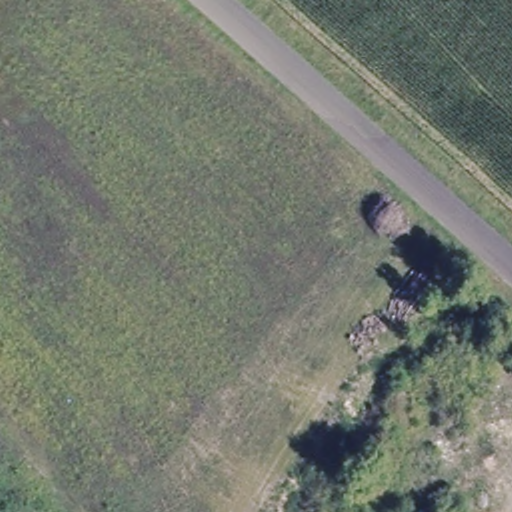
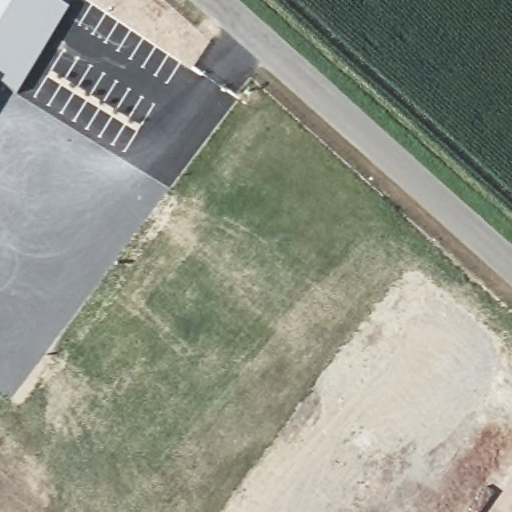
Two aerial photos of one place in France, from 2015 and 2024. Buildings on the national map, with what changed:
new [(69,7),(16,94),(0,84),(0,0),(56,0),(69,7)]

